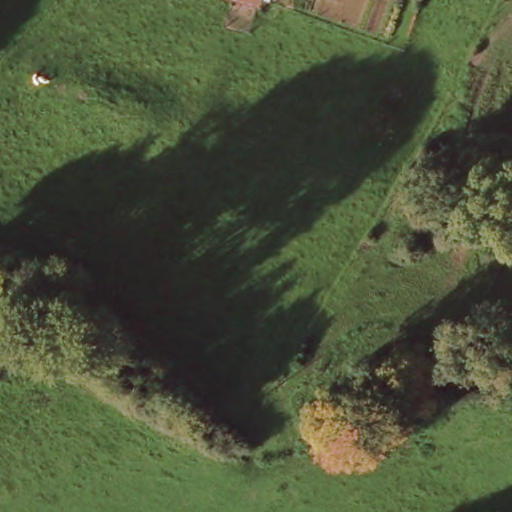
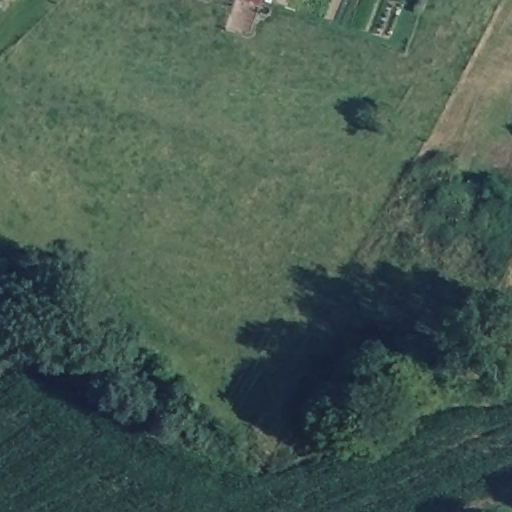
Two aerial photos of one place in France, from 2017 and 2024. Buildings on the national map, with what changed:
unchanged [(235,0),(270,0),(267,10),(235,0)]

